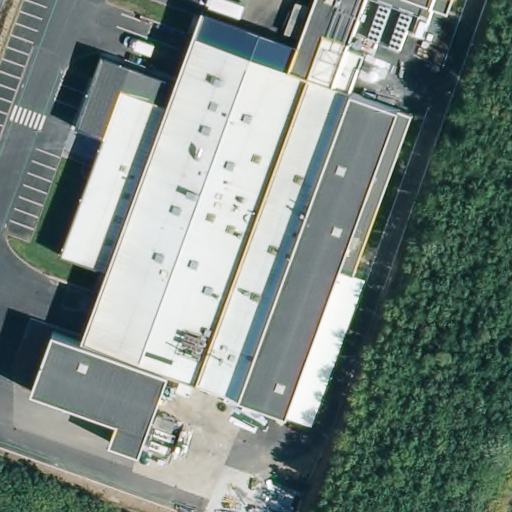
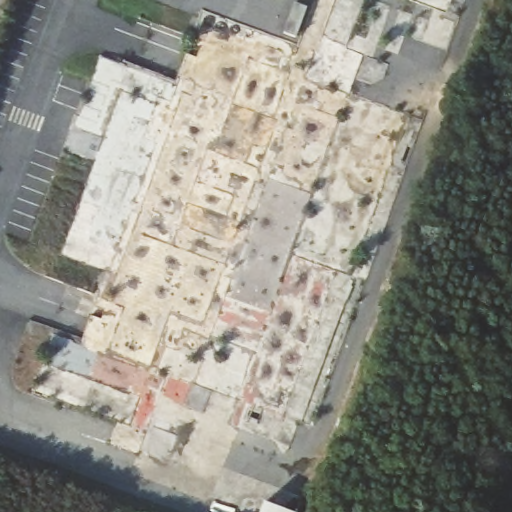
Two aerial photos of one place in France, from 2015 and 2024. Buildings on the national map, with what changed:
demolished [(335,86),(415,115),(304,422),(197,384),(192,395),(180,391),(185,380),(172,375),(143,455),(113,444),(120,424),(95,414),(92,413),(85,411),(35,392),(50,350),(56,333),(85,344),(90,327),(100,300),(110,273),(105,271),(96,268),(63,256),(79,213),(95,167),(86,163),(82,156),(83,154),(89,156),(92,146),(102,149),(105,138),(90,132),(77,128),(94,83),(104,55),(117,60),(134,66),(139,68),(141,69),(180,83),(197,36),(292,72),(319,0),(366,0),(350,44),(325,35),(310,77),(335,86)]
demolished [(450,14),(412,0),(456,0),(450,14)]
demolished [(289,33),(299,3),(311,8),(300,37),(289,33)]
demolished [(325,35),(350,44),(335,86),(310,77),(325,35)]

